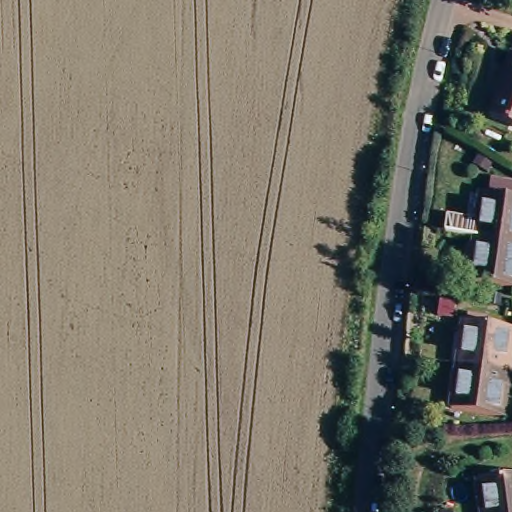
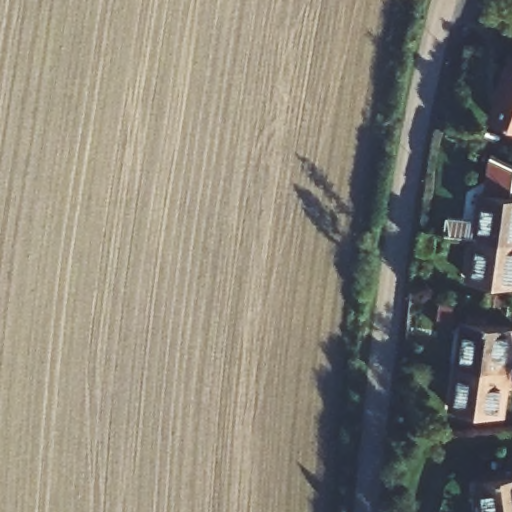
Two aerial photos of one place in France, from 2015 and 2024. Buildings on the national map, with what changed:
unchanged [(507,80),(504,79),(512,57),(512,121),(495,114),(507,80)]
unchanged [(474,220),(479,192),(484,193),(512,197),(512,242),(472,237),(474,220)]
unchanged [(472,237),(512,242),(512,287),(472,282),(465,282),(469,253),(472,237)]
unchanged [(465,323),(512,330),(508,358),(512,358),(512,371),(512,374),(454,366),(457,350),(461,322),(465,323)]
unchanged [(452,382),(454,366),(512,374),(509,389),(504,388),(499,418),(455,411),(447,410),(452,382)]
unchanged [(474,480),(480,479),(512,475),(512,512),(478,512),(477,507),(474,480)]

